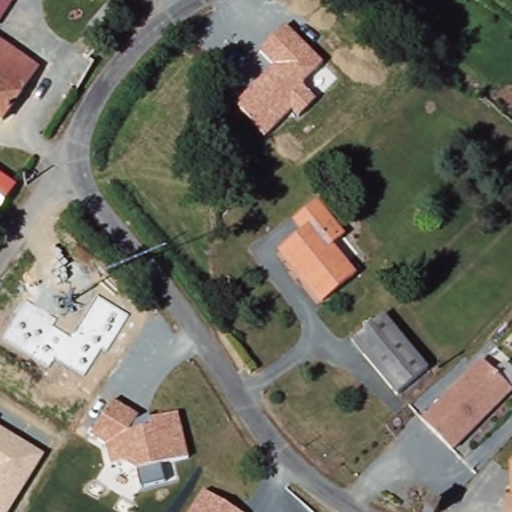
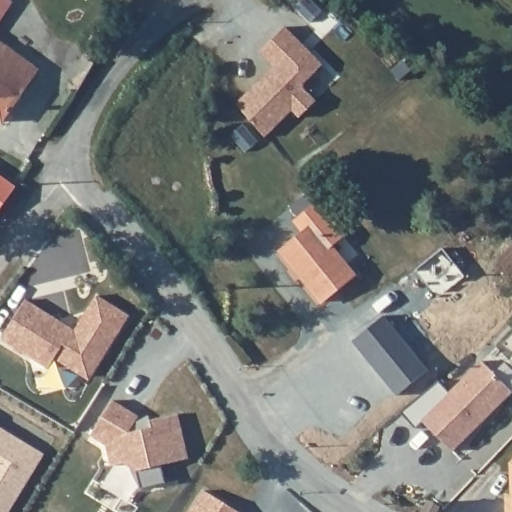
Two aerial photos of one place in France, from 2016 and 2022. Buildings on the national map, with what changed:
unchanged [(324,63),(302,86),(317,100),(299,116),(292,109),(265,134),(236,103),(275,66),(261,51),(286,25),(324,63)]
demolished [(67,69),(74,60),(57,50),(66,35),(89,50),(82,62),(88,65),(70,96),(63,93),(68,85),(54,77),(61,65),(67,69)]
unchanged [(42,72),(3,123),(0,121),(0,42),(42,72)]
unchanged [(21,185),(1,215),(0,214),(0,169),(21,185)]
unchanged [(307,236),(297,223),(320,204),(347,235),(332,247),(356,276),(324,303),(284,254),(307,236)]
new [(24,302),(74,333),(96,298),(129,319),(107,355),(102,352),(84,380),(55,362),(49,371),(0,341),(24,302)]
unchanged [(387,316),(430,368),(398,395),(355,342),(387,316)]
unchanged [(412,430),(475,373),(504,405),(441,462),(412,430)]
unchanged [(104,447),(89,437),(110,400),(136,413),(134,417),(177,412),(186,460),(160,465),(164,483),(140,487),(136,470),(121,463),(109,466),(104,447)]
unchanged [(42,455),(8,512),(0,512),(0,429),(42,455)]
unchanged [(188,512),(201,490),(237,512),(188,512)]
unchanged [(512,494),(512,512),(509,512),(509,494),(512,494)]

